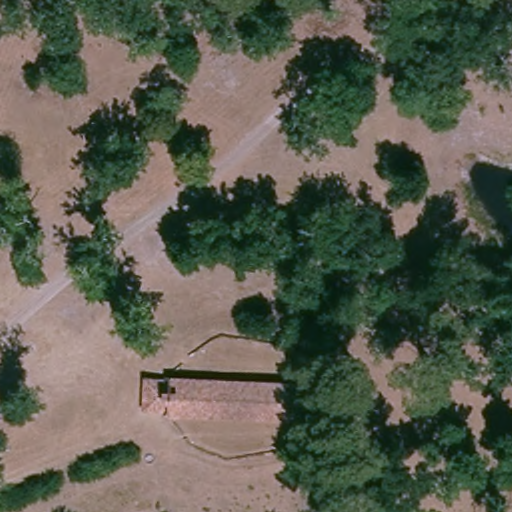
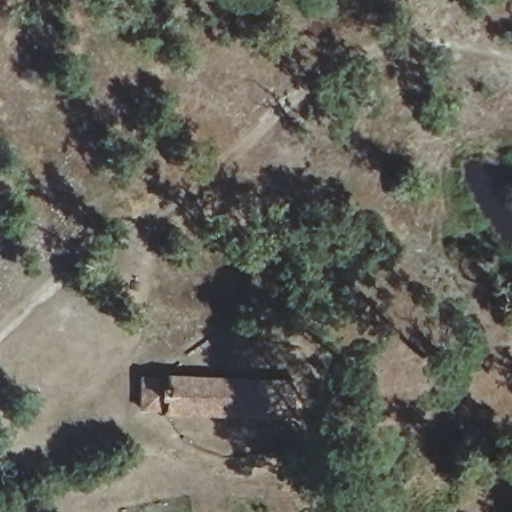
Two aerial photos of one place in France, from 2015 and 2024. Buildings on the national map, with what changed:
unchanged [(300,418),(175,404),(148,400),(152,367),(179,370),(305,386),(300,418)]

